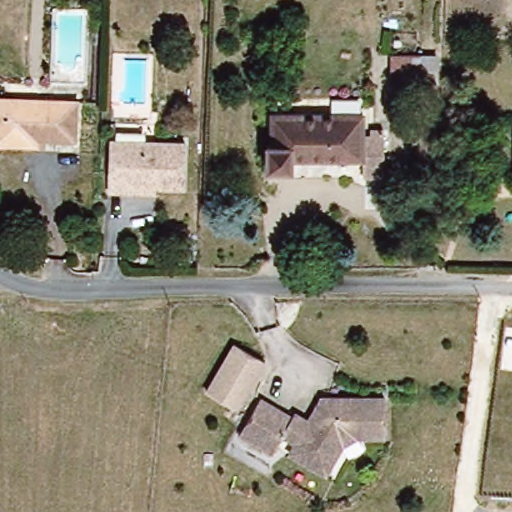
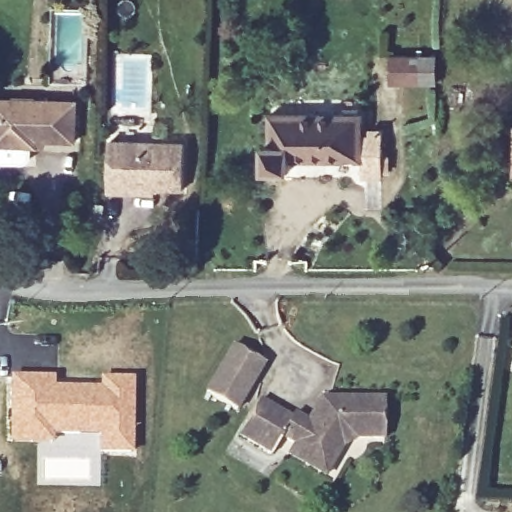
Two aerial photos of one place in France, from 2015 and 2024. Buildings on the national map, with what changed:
unchanged [(437,52),(437,87),(388,87),(389,52),(437,52)]
unchanged [(39,151),(0,149),(0,101),(76,100),(77,141),(38,141),(39,151)]
unchanged [(275,116),(367,117),(367,142),(377,142),(378,134),(390,134),(390,160),(400,161),(400,172),(389,172),(389,180),(367,180),(367,163),(290,160),(290,170),(266,170),(267,148),(275,148),(275,116)]
unchanged [(183,146),(182,187),(115,185),(116,144),(183,146)]
unchanged [(265,365),(237,413),(205,392),(234,345),(265,365)]
new [(11,374),(55,375),(55,385),(98,385),(99,376),(135,376),(132,453),(100,453),(99,436),(56,436),(55,444),(9,444),(11,374)]
unchanged [(280,443),(275,457),(243,438),(260,404),(293,417),(296,413),(311,420),(323,400),(386,401),(385,438),(358,438),(340,450),(331,466),(325,480),(288,464),(295,450),(280,443)]

